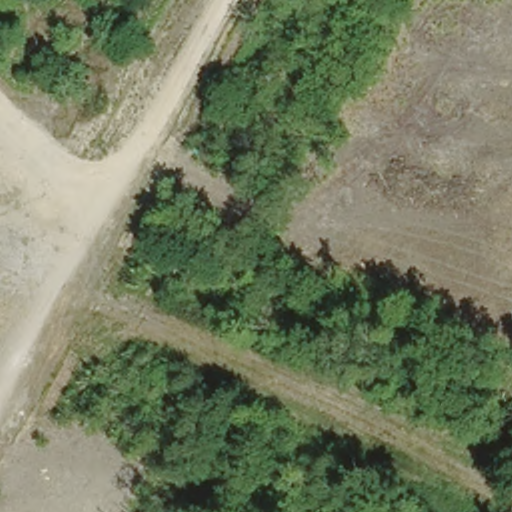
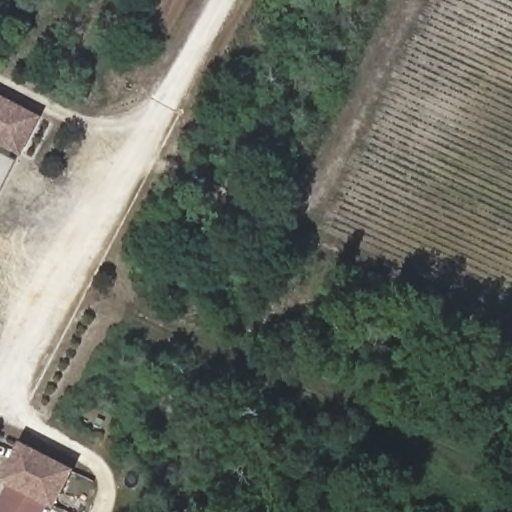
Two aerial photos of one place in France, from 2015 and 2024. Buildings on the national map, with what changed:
new [(44,117),(22,158),(0,145),(0,95),(44,117)]
new [(1,481),(21,440),(77,469),(57,509),(49,505),(46,512),(0,512),(0,502),(9,485),(1,481)]

